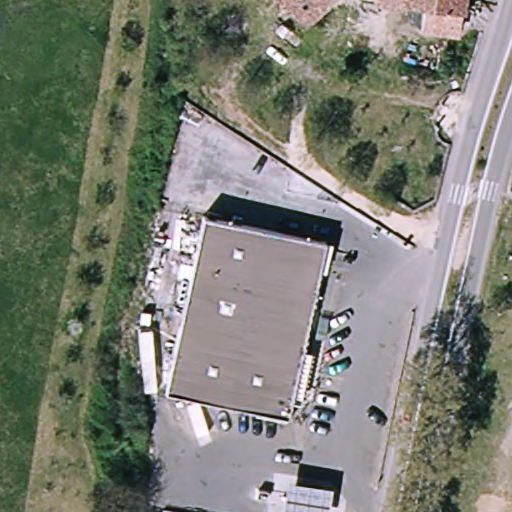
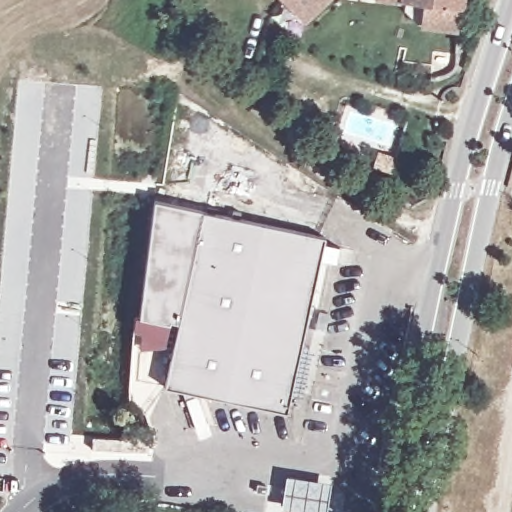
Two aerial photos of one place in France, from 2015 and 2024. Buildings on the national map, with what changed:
unchanged [(279,0),(311,0),(292,16),(279,0)]
unchanged [(414,4),(414,0),(453,0),(452,9),(414,4)]
new [(169,319),(168,323),(164,339),(133,331),(135,315),(140,316),(154,200),(200,210),(173,320),(169,319)]
unchanged [(323,241),(281,415),(157,384),(200,210),(323,241)]
unchanged [(327,483),(323,512),(285,512),(277,511),(282,476),(327,483)]

